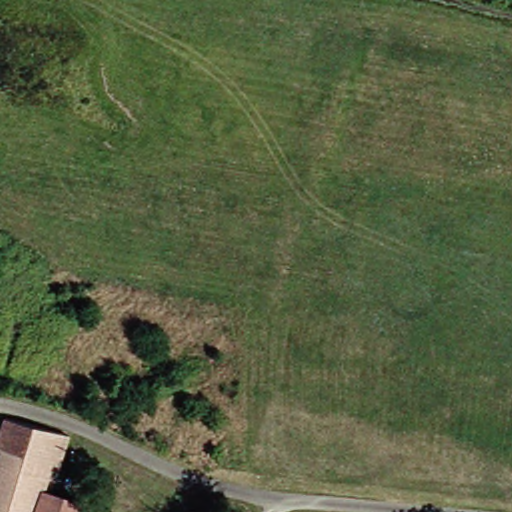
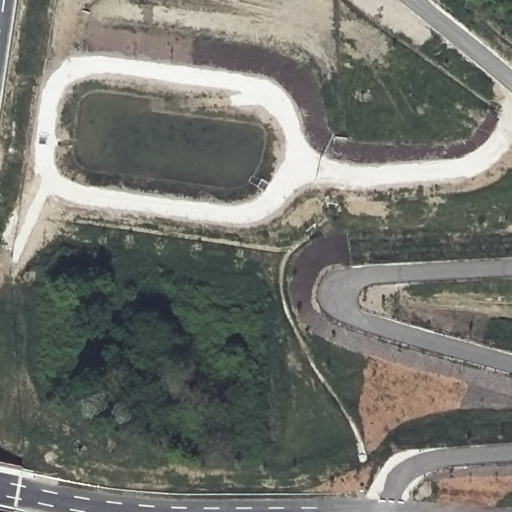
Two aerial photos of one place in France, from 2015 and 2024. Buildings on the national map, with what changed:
demolished [(54,492),(94,501),(89,512),(0,512),(0,445),(8,419),(71,435),(54,492)]

